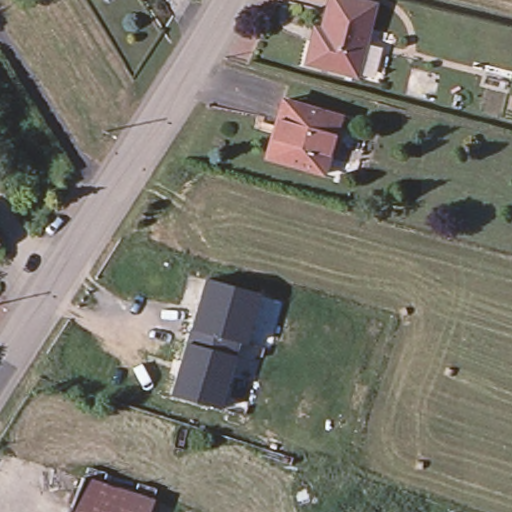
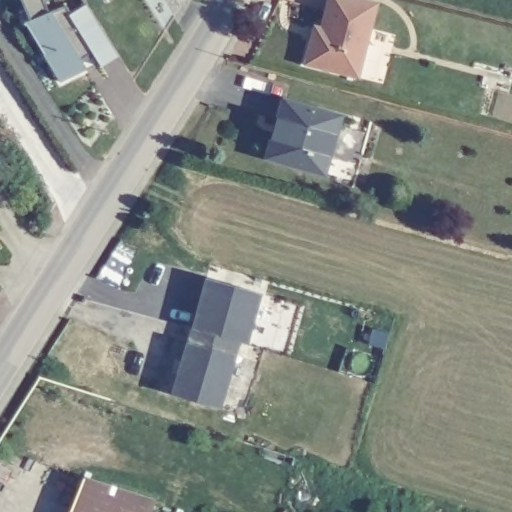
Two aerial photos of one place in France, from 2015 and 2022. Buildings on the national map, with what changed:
new [(22,24),(28,23),(19,0),(81,0),(117,58),(100,68),(91,54),(80,61),(85,70),(59,83),(42,54),(25,26),(24,27),(22,24)]
unchanged [(117,0),(111,4),(108,0),(117,0)]
unchanged [(315,28),(323,30),(331,0),(348,0),(377,7),(364,60),(360,77),(307,64),(311,48),(312,42),(315,28)]
unchanged [(337,115),(322,172),(265,156),(280,100),(337,115)]
unchanged [(145,215),(149,217),(147,220),(144,218),(145,215)]
unchanged [(0,256),(0,233),(10,249),(0,256)]
unchanged [(192,329),(194,329),(207,282),(261,296),(247,346),(242,344),(240,344),(192,330),(192,329)]
unchanged [(220,411),(173,396),(192,330),(240,344),(220,411)]
unchanged [(82,472),(153,499),(148,512),(66,512),(82,472)]

